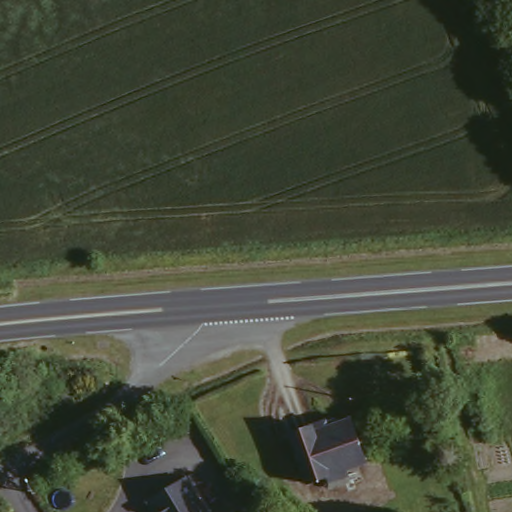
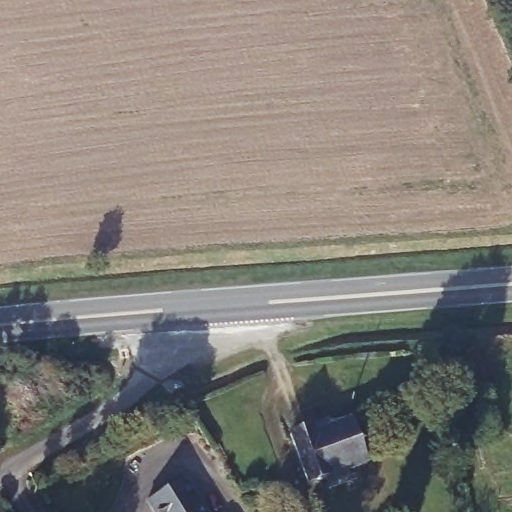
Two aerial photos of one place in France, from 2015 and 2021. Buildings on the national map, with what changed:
unchanged [(335,418),(336,423),(350,421),(360,461),(343,465),(347,474),(322,482),(319,473),(305,477),(292,429),(335,418)]
unchanged [(200,494),(211,512),(157,512),(150,501),(187,476),(200,494)]

